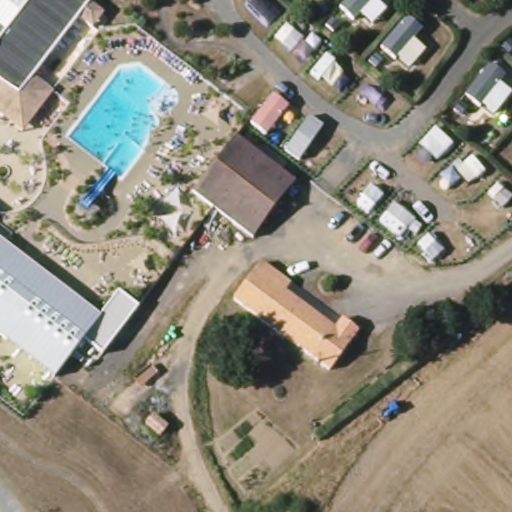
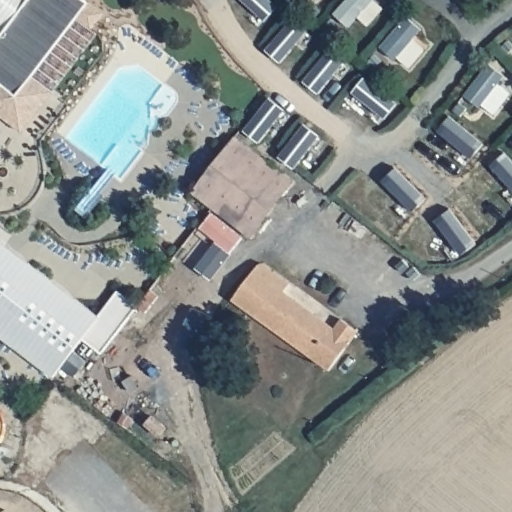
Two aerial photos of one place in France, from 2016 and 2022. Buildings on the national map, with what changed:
unchanged [(0,79),(0,19),(13,0),(96,0),(84,16),(70,6),(27,67),(12,87),(0,79)]
unchanged [(20,123),(0,109),(0,79),(12,87),(27,67),(49,82),(20,123)]
unchanged [(224,155),(240,135),(275,165),(292,143),(315,162),(251,239),(205,200),(200,197),(192,189),(197,183),(183,171),(207,142),(217,150),(224,155)]
unchanged [(0,239),(100,316),(120,291),(138,306),(102,354),(82,340),(55,377),(0,336),(0,239)]
unchanged [(237,301),(267,261),(293,281),(285,292),(331,325),(338,316),(354,328),(325,367),(323,365),(237,301)]

